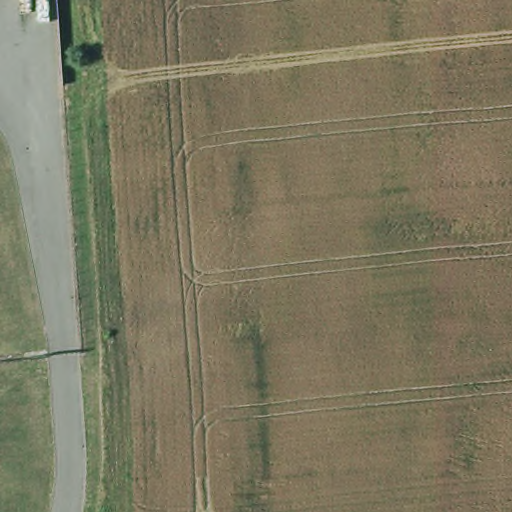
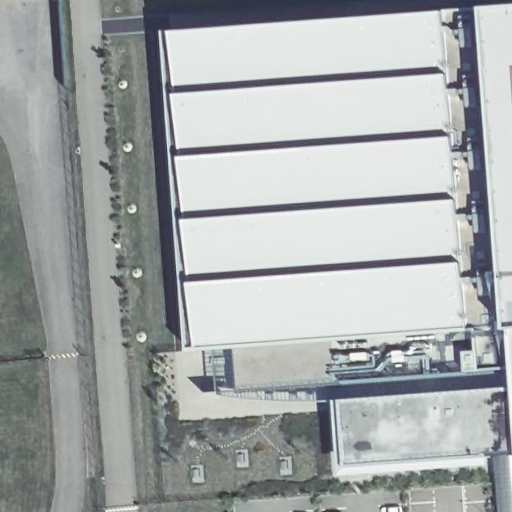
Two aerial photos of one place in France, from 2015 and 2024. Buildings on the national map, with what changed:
new [(512,454),(347,465),(342,382),(243,391),(243,346),(200,346),(175,34),(512,9),(512,454)]

